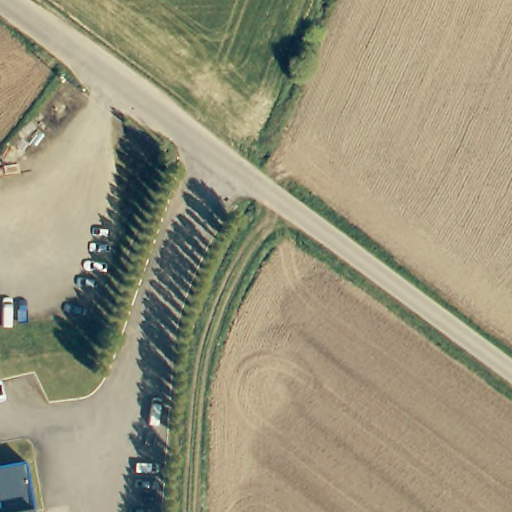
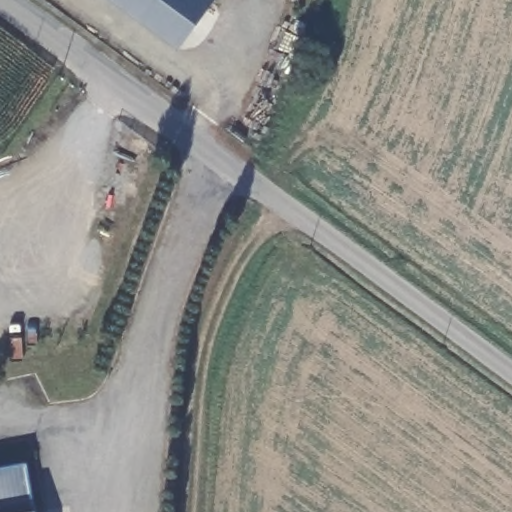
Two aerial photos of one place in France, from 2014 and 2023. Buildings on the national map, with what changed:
new [(213,0),(177,49),(111,0),(213,0)]
unchanged [(35,512),(0,512),(0,467),(26,462),(35,512)]

